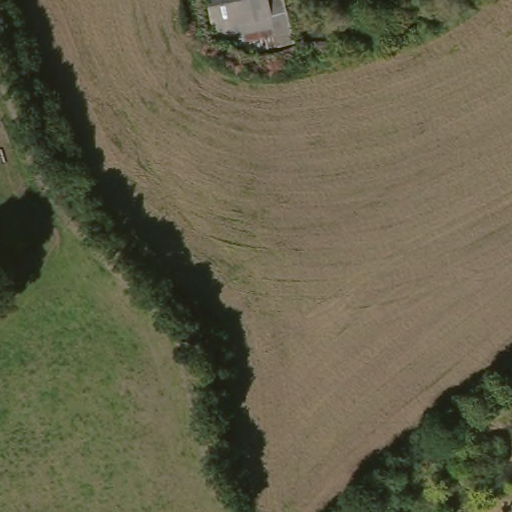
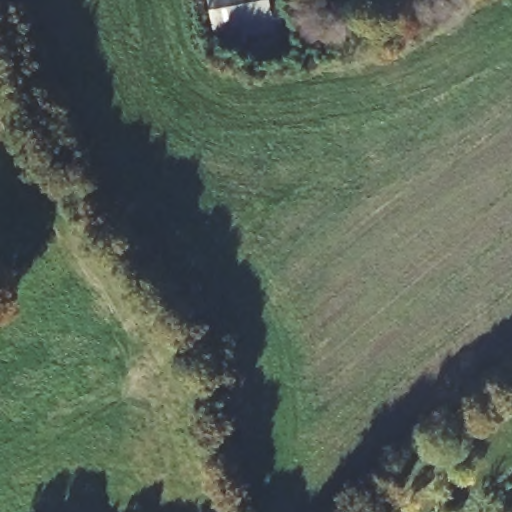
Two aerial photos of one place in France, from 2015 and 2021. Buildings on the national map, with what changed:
unchanged [(262,51),(219,39),(211,0),(294,0),(304,44),(262,51)]

